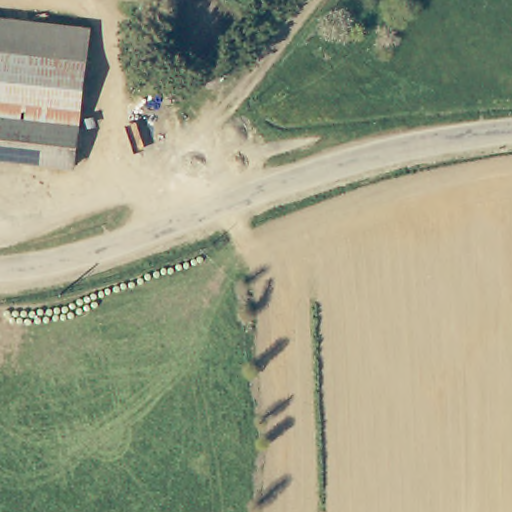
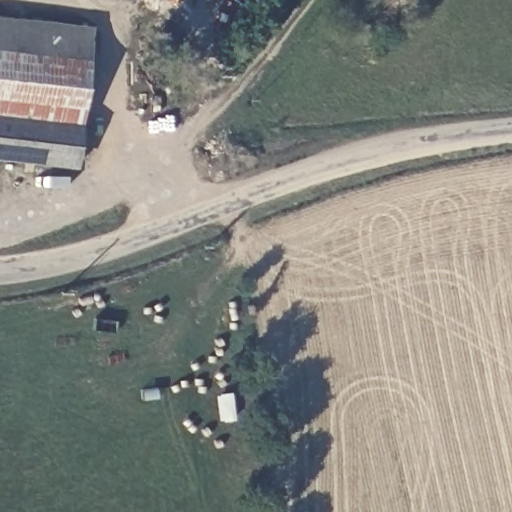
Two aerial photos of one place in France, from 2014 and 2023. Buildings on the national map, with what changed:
unchanged [(91,31),(80,129),(0,120),(0,20),(91,31)]
unchanged [(0,162),(0,120),(80,129),(76,170),(0,162)]

